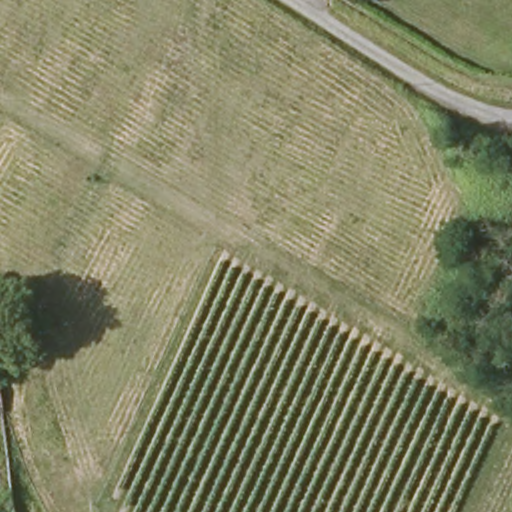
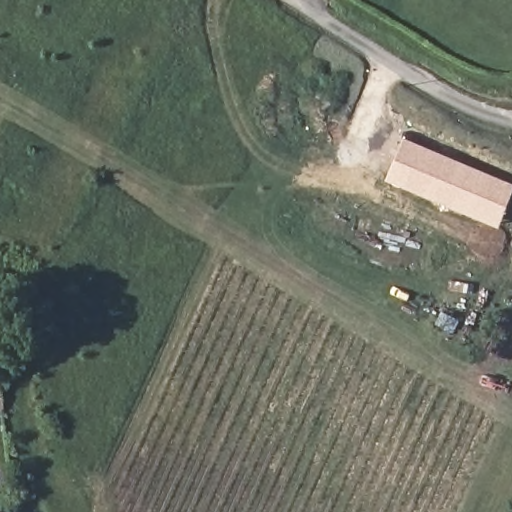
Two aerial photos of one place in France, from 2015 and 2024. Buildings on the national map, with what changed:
new [(385,181),(404,140),(512,184),(512,196),(498,229),(385,181)]
unchanged [(1,406),(0,406),(0,394),(1,406)]

